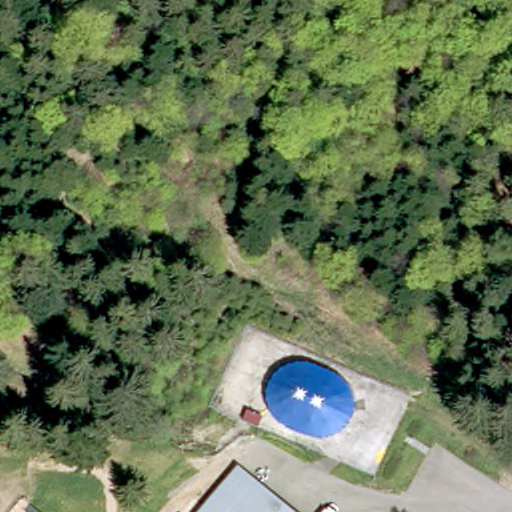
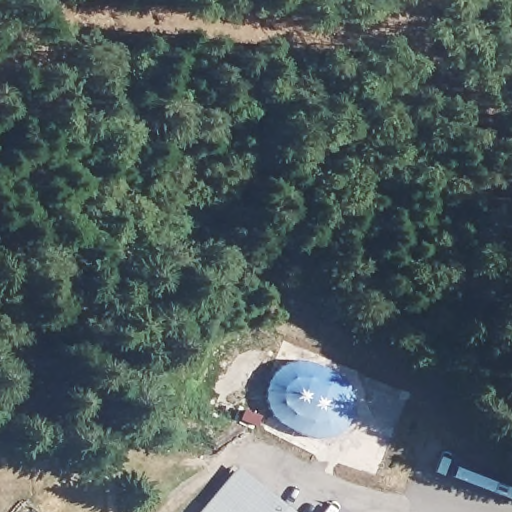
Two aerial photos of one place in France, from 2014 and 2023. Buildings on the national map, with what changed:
unchanged [(247,478),(286,512),(203,512),(238,471),(247,478)]

